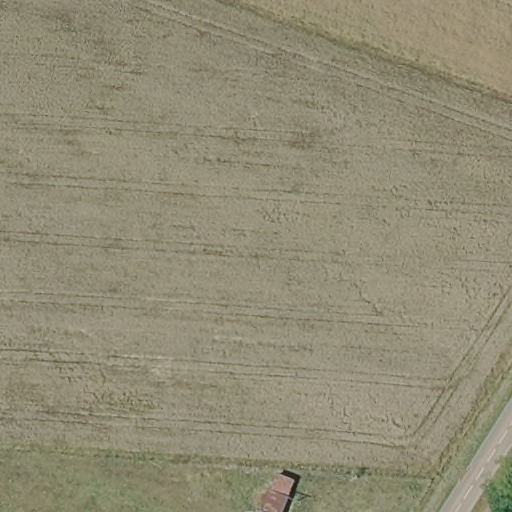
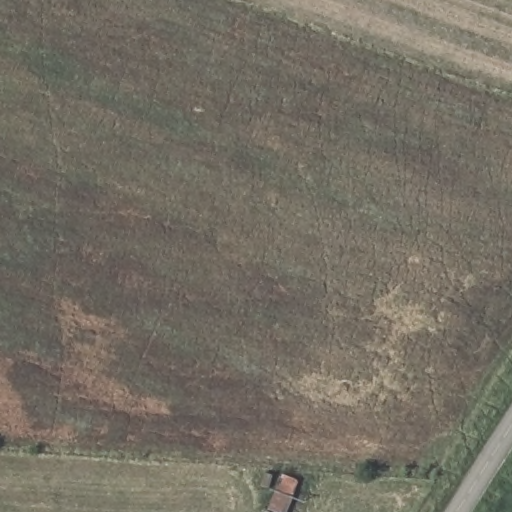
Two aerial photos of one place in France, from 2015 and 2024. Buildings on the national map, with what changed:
unchanged [(300,482),(286,512),(263,512),(278,475),(300,482)]

